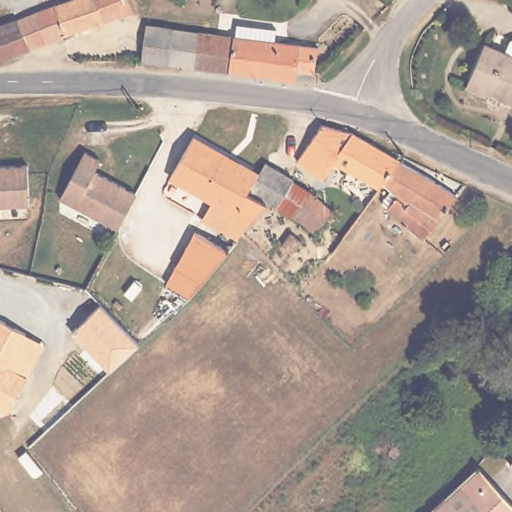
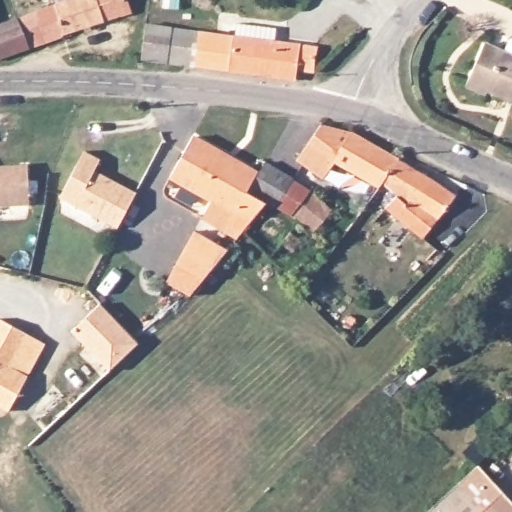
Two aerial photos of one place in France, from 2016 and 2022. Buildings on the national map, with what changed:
unchanged [(14,21),(36,9),(62,0),(128,0),(132,11),(122,14),(121,12),(62,33),(63,36),(0,57),(0,26),(14,21)]
unchanged [(240,21),(279,25),(277,39),(320,45),(317,69),(300,66),(298,78),(270,74),(239,70),(197,65),(201,29),(237,34),(240,21)]
unchanged [(145,59),(149,22),(201,29),(197,65),(145,59)]
unchanged [(487,90),(466,82),(485,40),(505,48),(508,39),(512,38),(512,97),(488,87),(487,90)]
unchanged [(426,235),(390,204),(401,191),(387,177),(382,185),(338,158),(335,164),(321,154),(312,166),(299,156),(330,116),(380,144),(406,157),(458,192),(426,235)]
unchanged [(266,207),(239,240),(207,222),(217,205),(174,180),(197,138),(263,176),(253,192),(252,193),(250,197),(266,207)]
unchanged [(60,199),(85,153),(100,162),(94,172),(136,195),(123,218),(117,230),(60,199)]
unchanged [(0,206),(0,166),(33,165),(34,205),(0,206)]
unchanged [(317,234),(280,207),(252,193),(253,192),(263,176),(270,165),(307,187),(337,211),(317,234)]
unchanged [(297,250),(286,241),(295,230),(305,238),(297,250)]
unchanged [(185,298),(165,285),(195,235),(224,252),(192,290),(185,298)]
unchanged [(141,345),(110,374),(70,333),(102,305),(141,345)]
unchanged [(0,409),(0,320),(25,335),(45,346),(27,378),(7,413),(0,409)]
unchanged [(512,455),(512,460),(510,457),(512,455)]
unchanged [(512,502),(512,504),(504,512),(422,512),(475,462),(512,502)]

